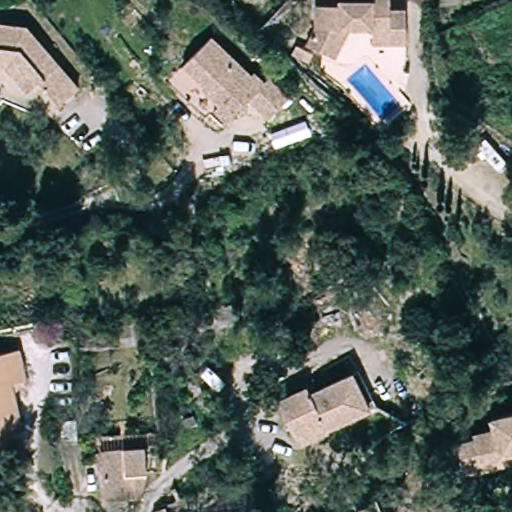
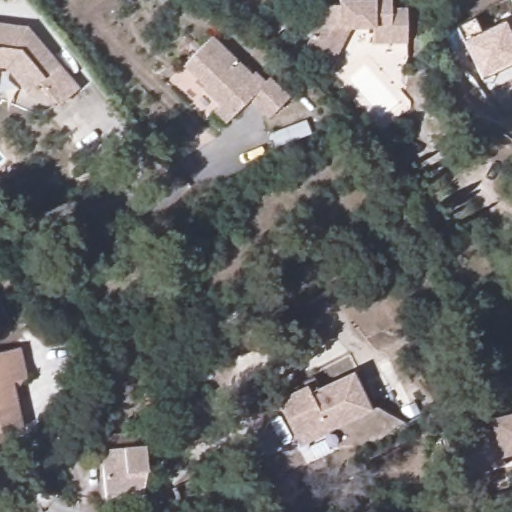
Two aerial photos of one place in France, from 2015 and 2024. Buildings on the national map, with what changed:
unchanged [(308,26),(306,4),(330,3),(330,0),(399,0),(400,43),(365,44),(365,29),(343,29),(330,58),(300,43),(308,26)]
unchanged [(437,2),(437,0),(452,0),(437,2)]
new [(455,26),(474,17),(481,30),(503,19),(512,15),(512,59),(481,75),(462,40),(455,26)]
unchanged [(30,30),(83,92),(61,110),(41,85),(29,97),(8,72),(1,72),(1,80),(0,80),(0,26),(30,30)]
unchanged [(215,40),(255,79),(256,77),(267,87),(271,83),(291,100),(271,121),(253,102),(230,126),(218,114),(223,109),(207,93),(209,90),(187,69),(215,40)]
unchanged [(285,54),(290,44),(306,53),(301,62),(285,54)]
unchanged [(18,347),(24,380),(10,382),(18,426),(0,430),(0,350),(18,347)]
unchanged [(270,399),(300,383),(303,389),(347,370),(364,408),(320,429),(320,431),(293,445),(270,399)]
unchanged [(470,441),(468,437),(487,432),(484,422),(512,414),(512,458),(497,461),(500,470),(460,481),(452,446),(470,441)]
unchanged [(65,442),(65,423),(80,421),(81,441),(65,442)]
unchanged [(92,474),(90,458),(154,454),(156,466),(148,466),(148,470),(142,471),(145,492),(145,494),(143,494),(141,506),(141,512),(103,512),(100,473),(92,474)]

